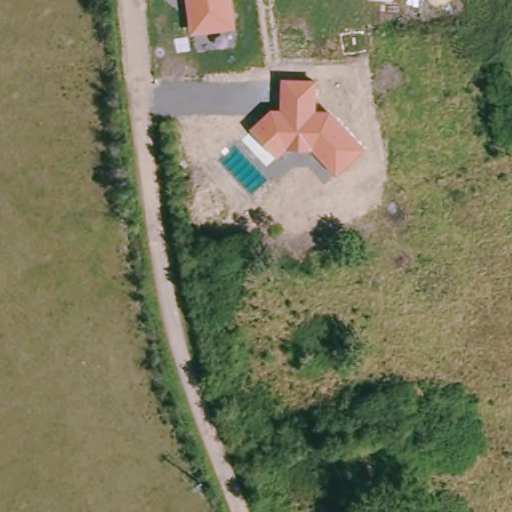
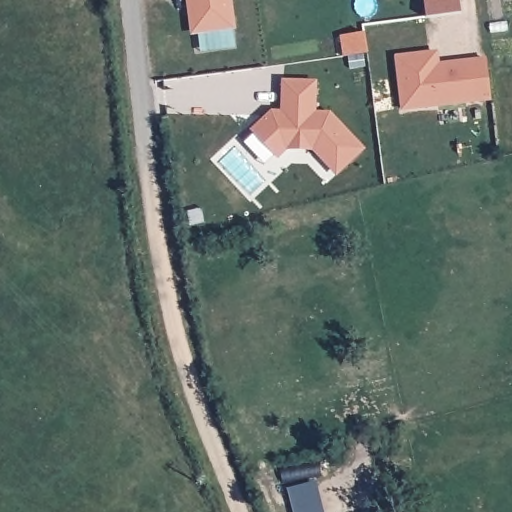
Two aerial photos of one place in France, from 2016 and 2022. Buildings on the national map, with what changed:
unchanged [(236,30),(191,36),(187,0),(232,0),(236,30)]
new [(396,56),(439,50),(440,62),(486,58),(491,101),(403,111),(396,56)]
unchanged [(317,81),(316,110),(330,111),(366,148),(336,177),(312,152),(286,151),(278,159),(249,131),(271,110),(280,111),(281,79),(317,81)]

